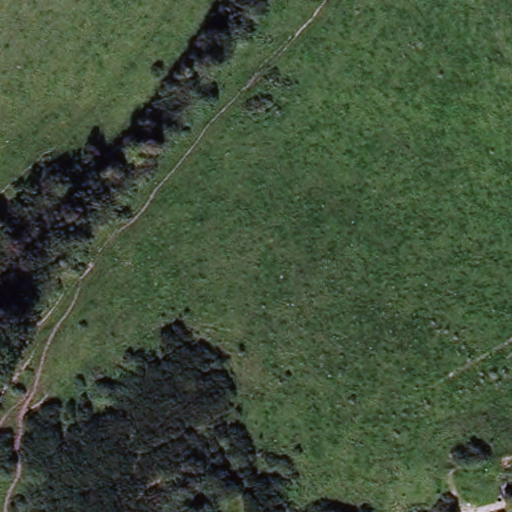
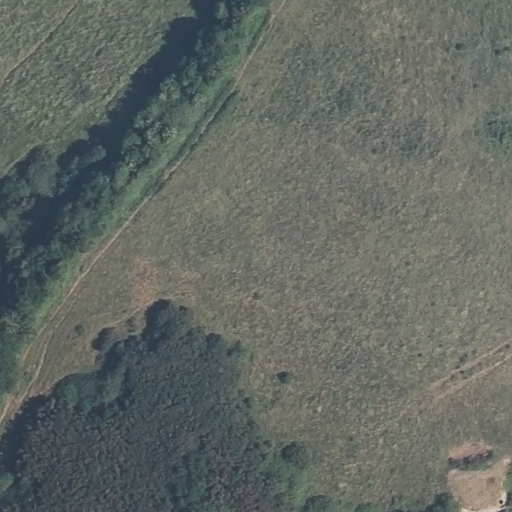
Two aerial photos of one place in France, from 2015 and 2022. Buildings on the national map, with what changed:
unchanged [(482,512),(462,512),(445,468),(512,455),(507,484),(509,508),(482,512)]

